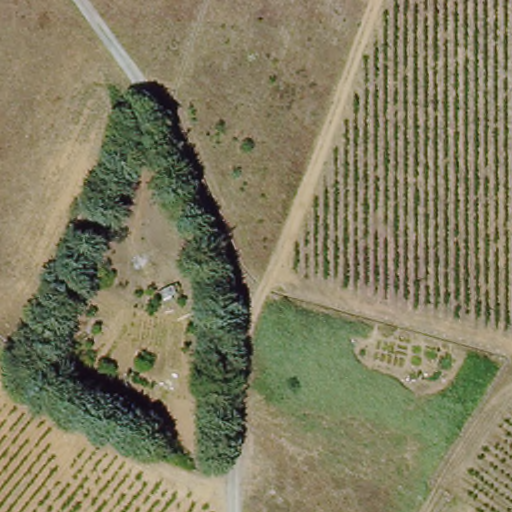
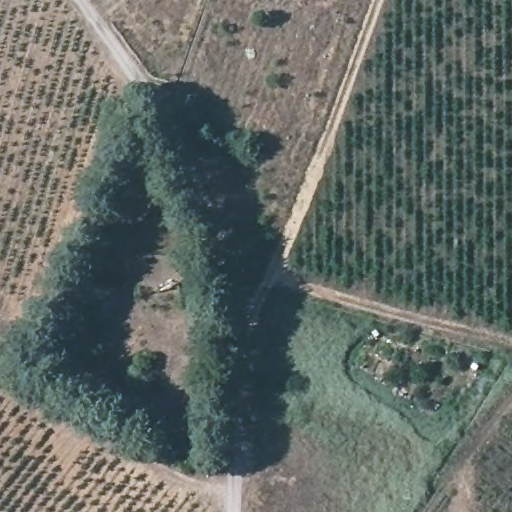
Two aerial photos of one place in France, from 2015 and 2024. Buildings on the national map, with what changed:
unchanged [(52,378),(35,371),(45,353),(60,365),(52,378)]

